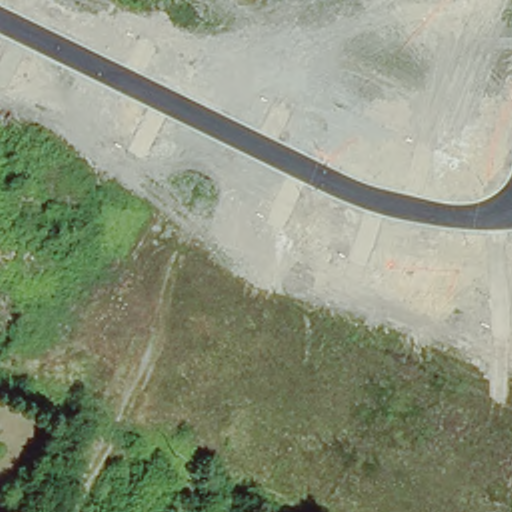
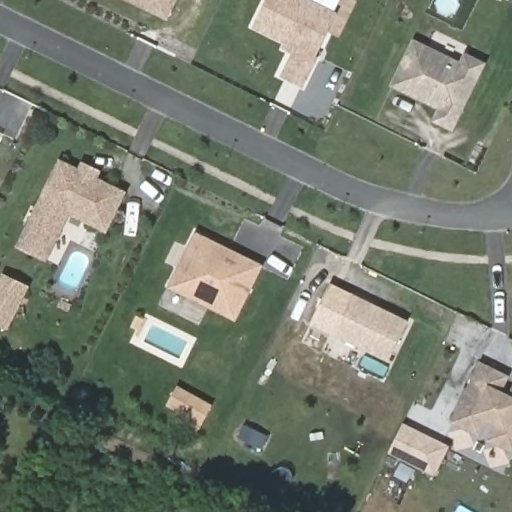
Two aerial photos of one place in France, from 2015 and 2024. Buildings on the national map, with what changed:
new [(125,0),(177,0),(167,21),(125,0)]
demolished [(221,0),(237,0),(230,7),(221,0)]
new [(280,77),(291,54),(282,50),(285,44),(254,30),(267,0),(312,0),(338,13),(302,89),(280,77)]
new [(432,121),(437,110),(390,87),(413,39),(460,62),(465,52),(486,64),(452,132),(432,121)]
new [(15,246),(59,159),(78,168),(81,162),(101,172),(99,178),(127,192),(106,234),(69,215),(46,262),(15,246)]
new [(235,322),(167,287),(196,231),(263,266),(235,322)]
new [(29,288),(9,330),(0,325),(0,290),(6,277),(29,288)]
new [(331,335),(351,293),(408,322),(387,363),(331,335)]
new [(450,422),(480,361),(512,377),(512,454),(450,422)]
new [(388,454),(403,423),(450,446),(435,477),(388,454)]

